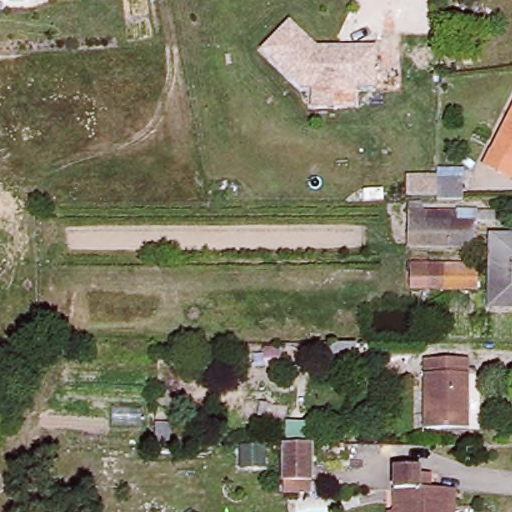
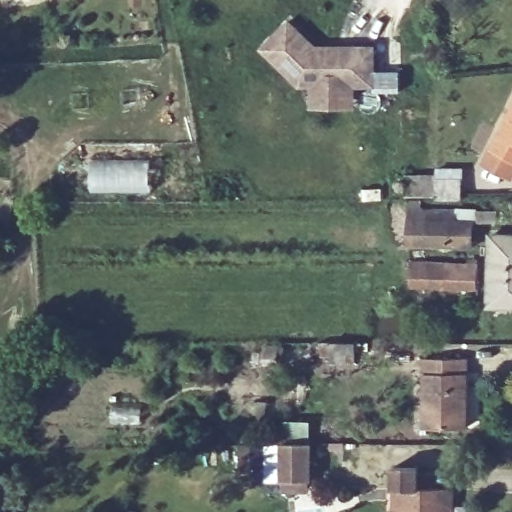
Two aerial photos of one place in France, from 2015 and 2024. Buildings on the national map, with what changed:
unchanged [(0,4),(0,0),(34,0),(34,2),(0,4)]
unchanged [(371,85),(297,85),(259,49),(286,21),(312,47),(326,46),(371,46),(371,85)]
unchanged [(512,125),(512,160),(498,152),(512,125)]
new [(94,184),(94,165),(150,164),(150,190),(105,191),(105,184),(94,184)]
unchanged [(430,172),(457,172),(456,191),(429,191),(430,172)]
unchanged [(452,247),(414,246),(414,213),(478,211),(478,224),(477,247),(452,247)]
unchanged [(491,303),(492,239),(512,238),(512,304),(491,303)]
unchanged [(480,265),(479,292),(430,290),(431,265),(480,265)]
unchanged [(355,342),(356,365),(335,365),(335,355),(318,355),(318,342),(355,342)]
unchanged [(431,358),(471,357),(471,429),(431,430),(431,358)]
unchanged [(240,445),(265,445),(265,467),(240,468),(240,445)]
unchanged [(310,452),(310,488),(283,488),(283,453),(310,452)]
unchanged [(459,512),(389,512),(389,468),(418,468),(420,476),(430,477),(431,491),(445,491),(459,492),(459,512)]

